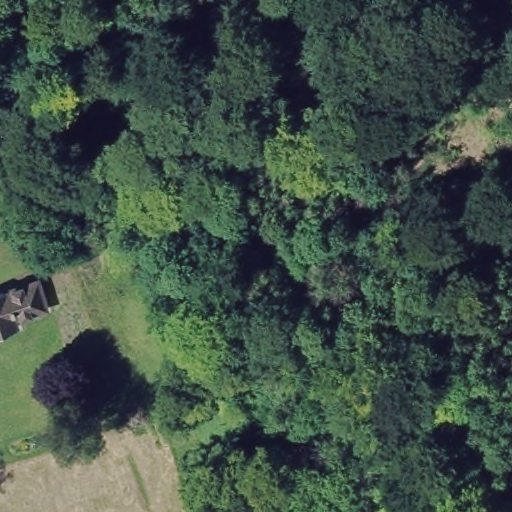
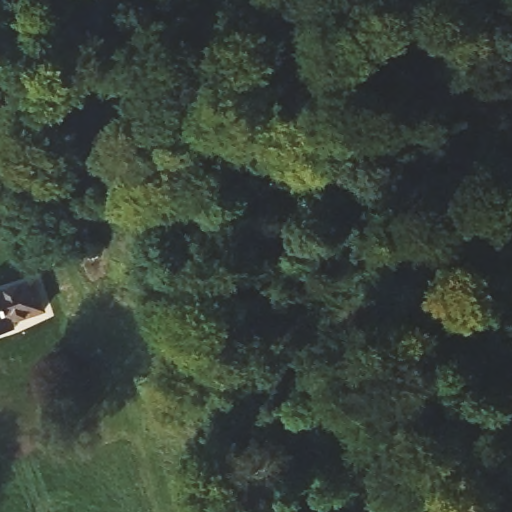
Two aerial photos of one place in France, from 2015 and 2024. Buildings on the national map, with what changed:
unchanged [(0,332),(0,292),(35,281),(45,309),(14,319),(16,326),(0,332)]

